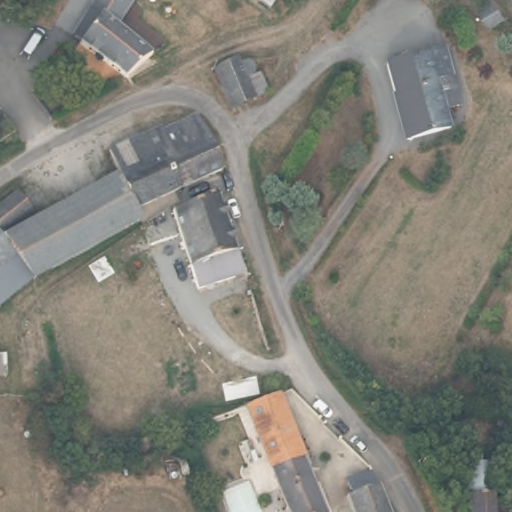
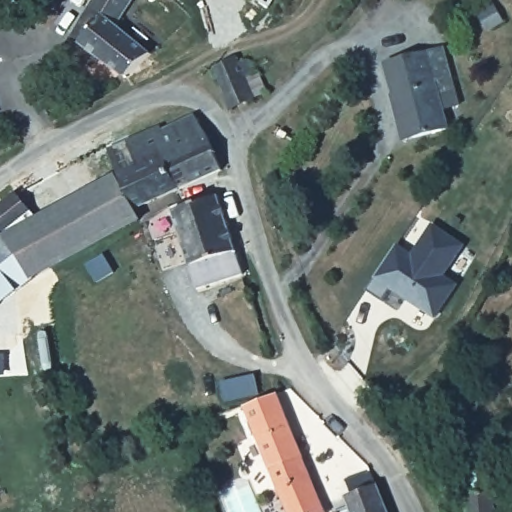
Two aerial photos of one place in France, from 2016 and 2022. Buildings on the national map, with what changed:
unchanged [(127,80),(80,49),(87,38),(73,29),(92,0),(136,0),(117,30),(152,54),(142,64),(127,80)]
unchanged [(259,0),(274,0),(271,7),(259,0)]
unchanged [(442,47),(451,75),(433,80),(448,128),(405,140),(382,65),(442,47)]
unchanged [(258,97),(242,103),(219,111),(204,68),(230,53),(232,58),(242,54),(246,54),(250,58),(251,61),(251,65),(246,69),(247,74),(250,73),(258,97)]
unchanged [(204,179),(179,188),(124,209),(112,180),(102,154),(153,130),(155,133),(192,115),(205,139),(220,174),(204,179)]
unchanged [(31,284),(27,279),(0,246),(0,240),(112,180),(124,209),(127,219),(31,284)]
unchanged [(30,214),(0,239),(0,199),(10,191),(30,214)]
unchanged [(194,287),(166,209),(208,193),(235,273),(194,287)]
new [(397,243),(412,253),(432,223),(466,244),(446,274),(460,284),(436,319),(391,288),(382,300),(367,290),(375,277),(397,243)]
unchanged [(0,299),(0,246),(27,279),(0,299)]
unchanged [(0,350),(7,349),(9,374),(0,375),(0,350)]
unchanged [(244,408),(279,393),(328,512),(287,512),(244,408)]
unchanged [(493,512),(469,512),(469,497),(455,497),(455,476),(492,474),(493,512)]
unchanged [(342,506),(347,503),(340,486),(363,476),(380,512),(344,512),(342,506)]

